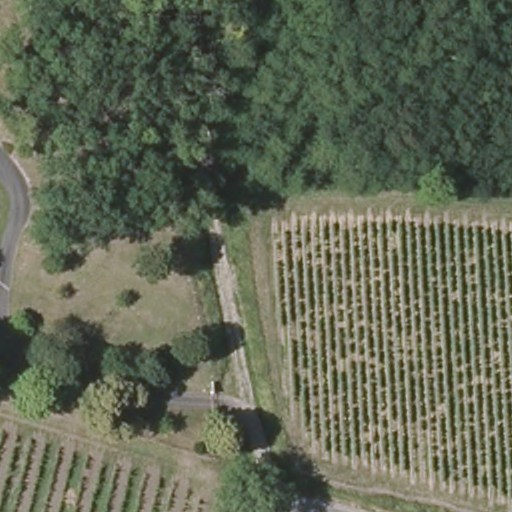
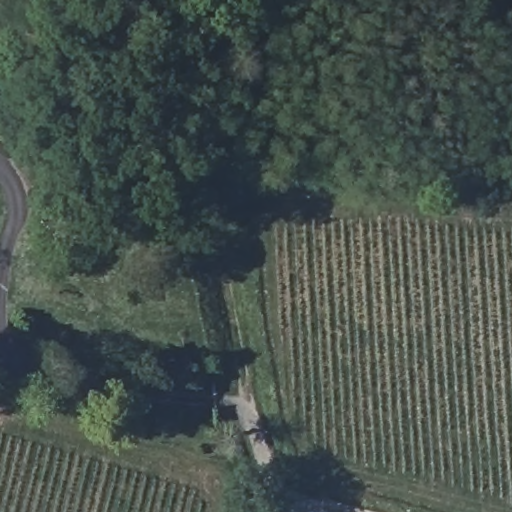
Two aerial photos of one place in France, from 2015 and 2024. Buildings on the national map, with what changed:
[]

